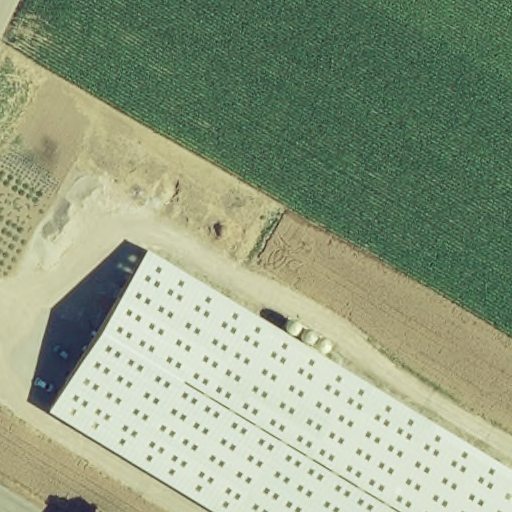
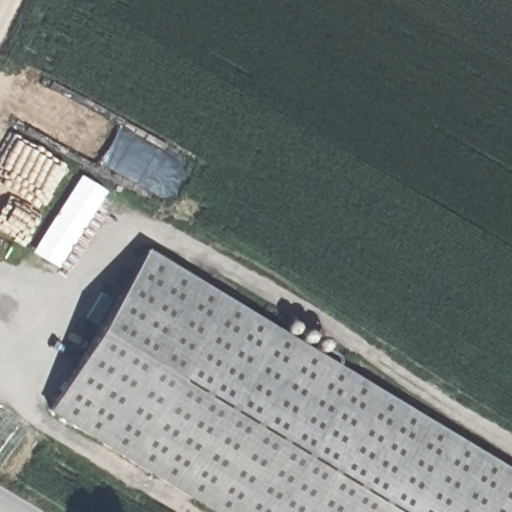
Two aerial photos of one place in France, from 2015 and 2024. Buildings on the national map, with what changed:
new [(58,267),(32,251),(80,176),(106,192),(58,267)]
unchanged [(146,249),(512,470),(512,512),(215,512),(47,411),(146,249)]

